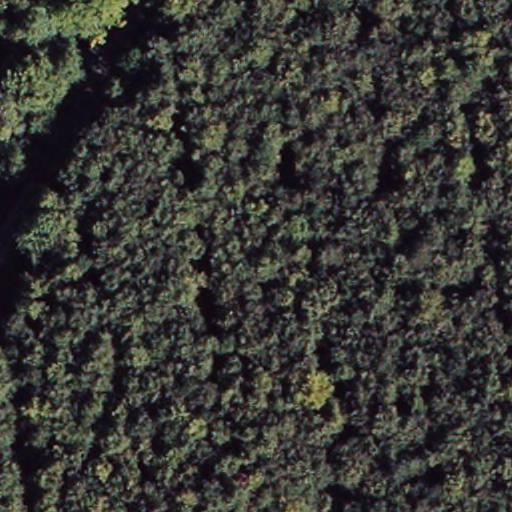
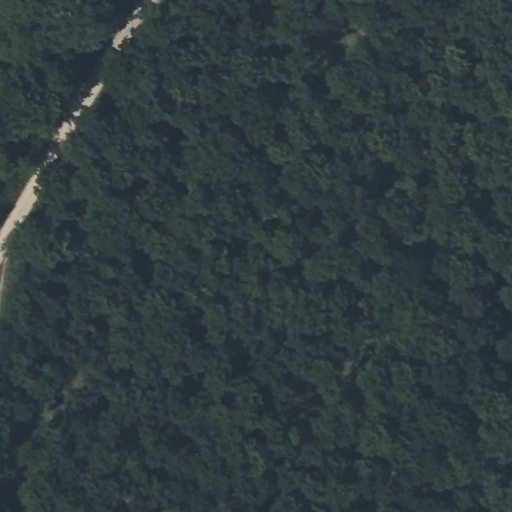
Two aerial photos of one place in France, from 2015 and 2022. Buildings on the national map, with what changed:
[]

